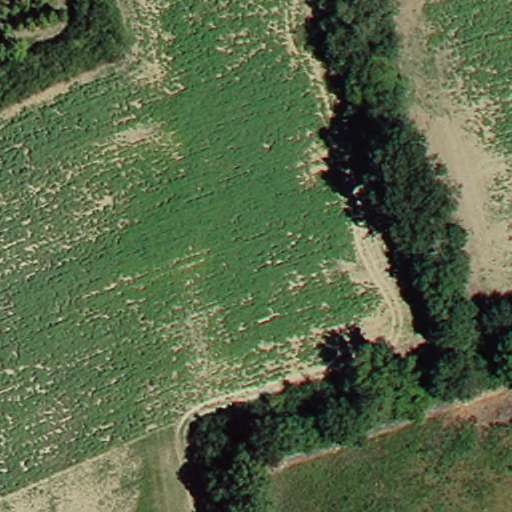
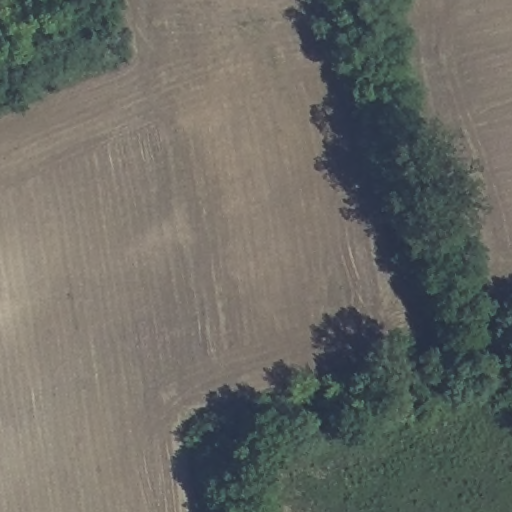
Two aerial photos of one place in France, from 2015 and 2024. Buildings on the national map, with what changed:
[]

